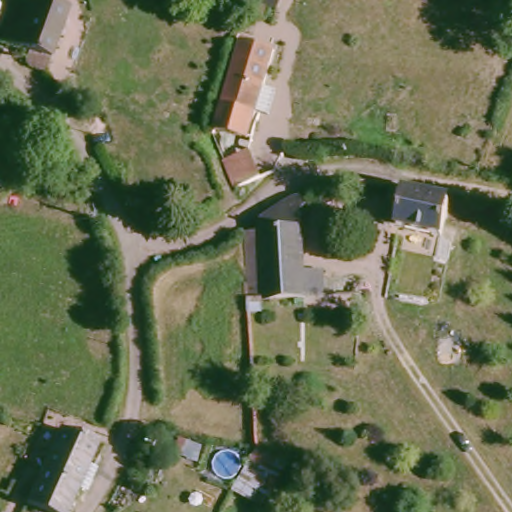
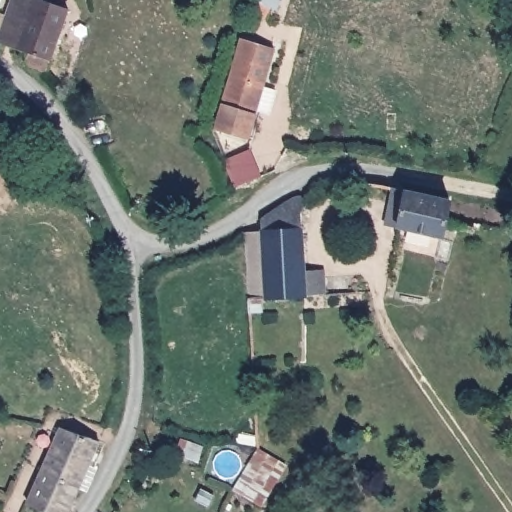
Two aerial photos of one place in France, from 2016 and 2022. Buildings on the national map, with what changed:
unchanged [(37,57),(36,44),(6,32),(18,0),(72,0),(77,2),(57,64),(37,57)]
unchanged [(219,126),(225,100),(244,34),(278,45),(260,110),(254,136),(219,126)]
unchanged [(249,144),(259,172),(233,180),(223,152),(249,144)]
unchanged [(442,238),(398,228),(405,192),(448,201),(442,238)]
unchanged [(331,312),(311,313),(270,314),(266,250),(249,245),(307,212),(313,220),(307,225),(309,286),(330,285),(331,312)]
unchanged [(266,250),(270,314),(253,315),(249,245),(266,250)]
unchanged [(103,439),(71,512),(53,512),(31,503),(66,426),(103,439)]
unchanged [(289,465),(265,505),(238,491),(261,449),(289,465)]

